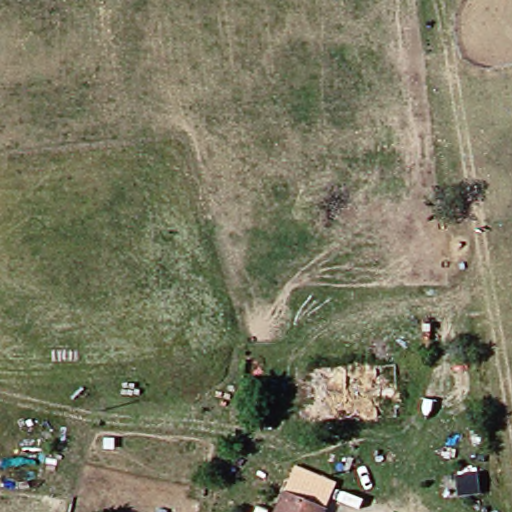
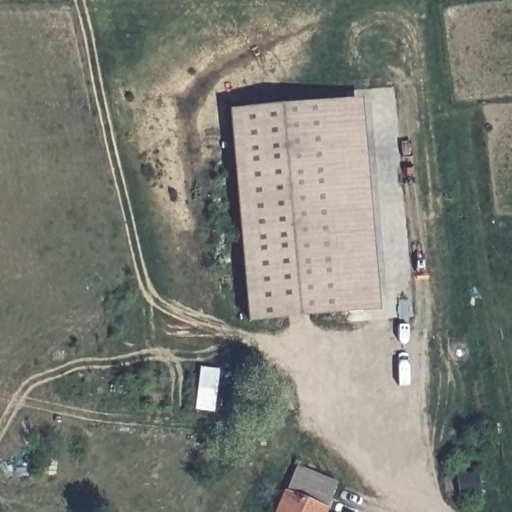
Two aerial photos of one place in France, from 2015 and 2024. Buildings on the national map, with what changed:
new [(380,310),(248,323),(230,108),(361,99),(380,310)]
demolished [(389,418),(331,420),(297,422),(295,366),(372,363),(373,351),(387,351),(388,363),(389,418)]
unchanged [(328,512),(281,512),(297,472),(337,490),(328,512)]

